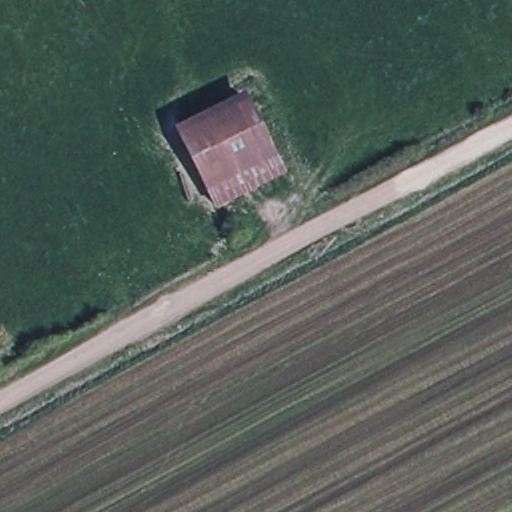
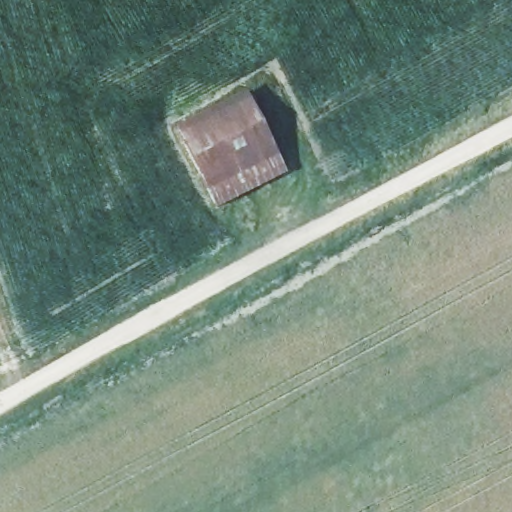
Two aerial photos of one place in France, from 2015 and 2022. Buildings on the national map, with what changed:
unchanged [(245,102),(277,168),(212,200),(179,135),(245,102)]

